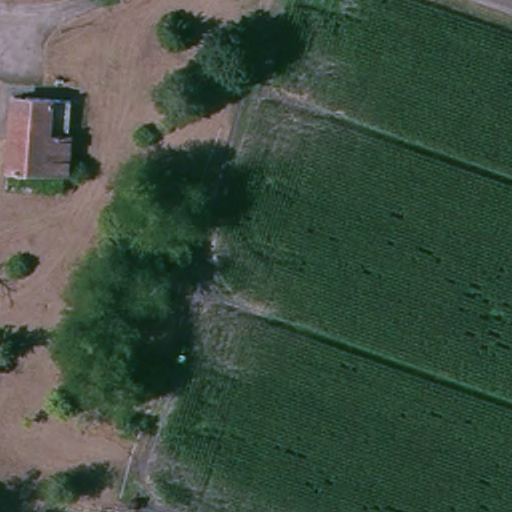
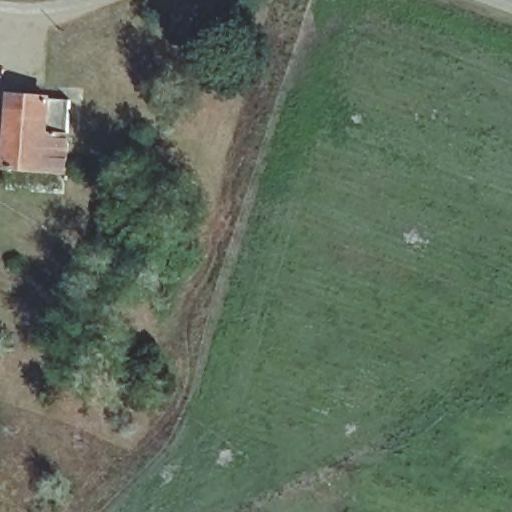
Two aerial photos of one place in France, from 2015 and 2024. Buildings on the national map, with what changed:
unchanged [(7,93),(52,94),(76,94),(77,172),(49,172),(8,171),(7,93)]

